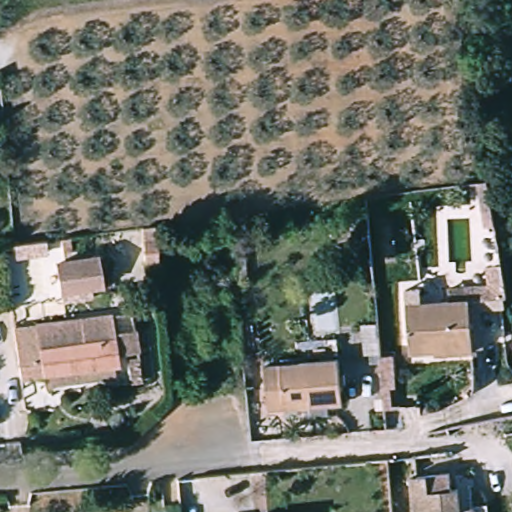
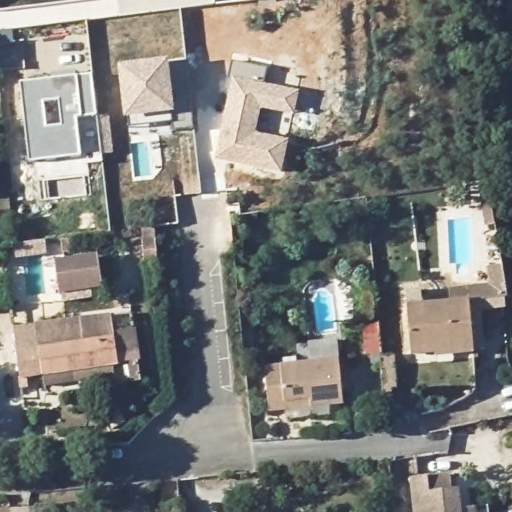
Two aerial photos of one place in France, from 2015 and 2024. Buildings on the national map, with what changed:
new [(131,112),(126,65),(189,59),(196,127),(175,129),(174,121),(131,125),(131,112)]
new [(231,78),(235,59),(271,67),(267,85),(281,88),(300,92),(296,112),(277,108),(262,105),(256,134),(289,142),(283,171),(219,157),(237,79),(231,78)]
new [(93,75),(97,117),(78,119),(81,157),(28,162),(20,82),(93,75)]
unchanged [(105,286),(63,291),(62,262),(101,257),(105,286)]
unchanged [(474,348),(428,352),(428,356),(411,356),(409,310),(470,307),(474,348)]
unchanged [(73,376),(19,381),(17,344),(40,342),(40,335),(38,325),(83,320),(84,331),(85,338),(115,335),(117,358),(113,358),(114,371),(73,376)]
unchanged [(342,406),(313,407),(312,397),(289,400),(290,410),(268,412),(264,365),(338,360),(342,406)]
unchanged [(402,372),(404,397),(393,397),(392,382),(391,373),(402,372)]
unchanged [(461,490),(464,512),(416,512),(413,478),(454,473),(456,490),(461,490)]

